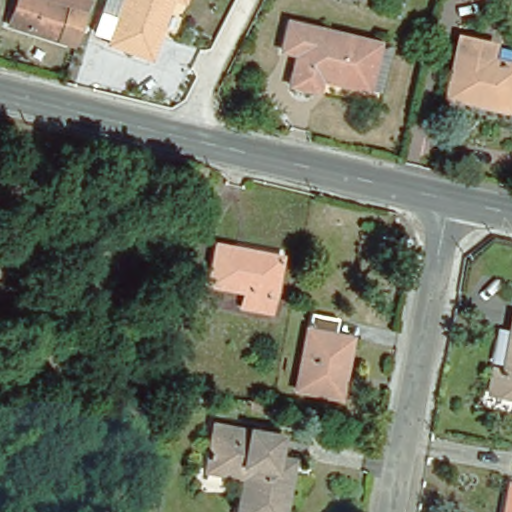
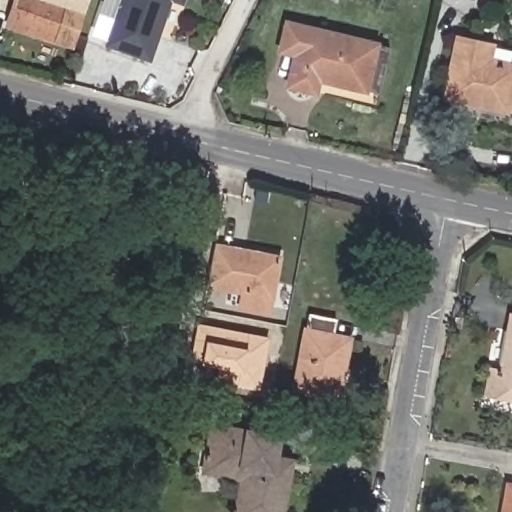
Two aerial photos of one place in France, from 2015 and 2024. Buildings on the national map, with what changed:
unchanged [(7,24),(15,0),(86,0),(72,45),(7,24)]
unchanged [(156,30),(150,52),(108,39),(120,0),(166,0),(156,30)]
unchanged [(382,40),(371,86),(313,73),(311,85),(281,78),(288,48),(274,44),(281,15),(382,40)]
unchanged [(501,44),(498,56),(512,59),(512,106),(443,91),(452,46),(473,50),(476,39),(501,44)]
unchanged [(280,252),(270,307),(242,302),(245,287),(208,280),(215,240),(280,252)]
unchanged [(487,360),(497,361),(507,306),(512,307),(512,390),(483,384),(487,360)]
unchanged [(338,319),(335,335),(351,338),(340,397),(295,388),(309,314),(338,319)]
new [(227,367),(200,361),(192,360),(198,323),(270,336),(258,391),(224,384),(227,367)]
unchanged [(205,466),(213,419),(280,432),(276,449),(292,452),(290,469),(282,512),(235,512),(242,473),(205,466)]
unchanged [(512,481),(512,512),(503,512),(508,480),(512,481)]

